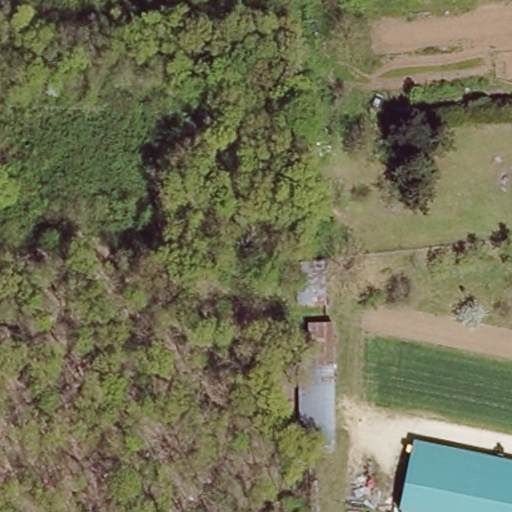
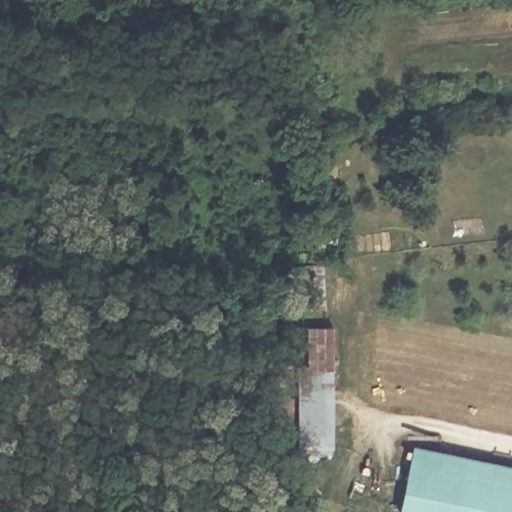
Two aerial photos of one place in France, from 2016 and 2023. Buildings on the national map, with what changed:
unchanged [(300,301),(297,269),(329,264),(333,304),(300,301)]
unchanged [(313,352),(312,329),(335,329),(338,434),(311,434),(313,352)]
unchanged [(403,512),(413,465),(418,445),(512,467),(512,512),(403,512)]

